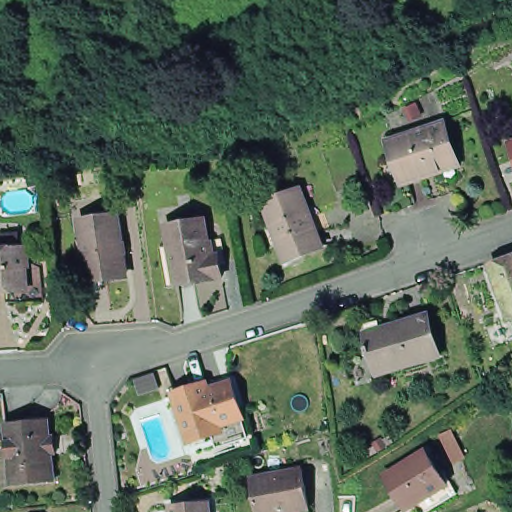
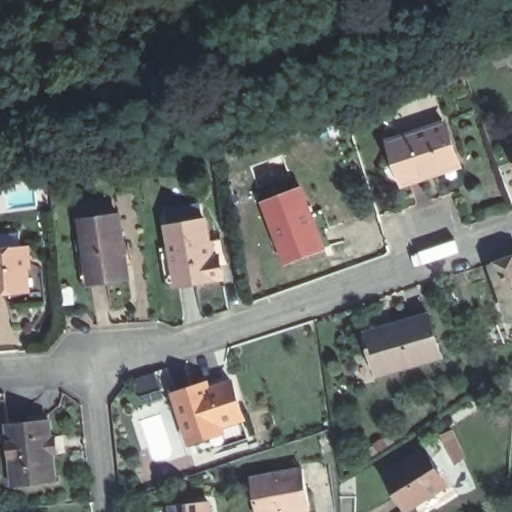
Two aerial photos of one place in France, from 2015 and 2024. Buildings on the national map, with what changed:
unchanged [(426,181),(402,188),(388,145),(445,127),(456,165),(458,171),(426,181)]
unchanged [(262,201),(300,187),(322,246),(284,260),(262,201)]
unchanged [(119,216),(127,275),(89,281),(80,223),(119,216)]
unchanged [(205,216),(205,256),(213,256),(213,279),(165,280),(165,217),(205,216)]
unchanged [(25,250),(27,290),(0,292),(0,251),(25,250)]
unchanged [(484,265),(512,254),(512,315),(502,318),(484,265)]
unchanged [(445,360),(381,378),(375,357),(372,357),(371,351),(373,350),(370,342),(369,336),(395,329),(432,318),(445,360)]
unchanged [(215,438),(192,445),(175,395),(207,385),(224,380),(227,387),(234,384),(245,419),(227,425),(222,426),(225,435),(215,438)]
unchanged [(10,482),(10,475),(5,423),(48,420),(50,435),(62,434),(63,451),(51,452),(53,472),(54,479),(10,482)]
unchanged [(452,491),(420,512),(408,512),(390,482),(431,456),(452,491)]
unchanged [(309,508),(289,512),(256,512),(249,477),(300,467),(309,508)]
unchanged [(202,512),(164,512),(163,503),(201,499),(202,512)]

